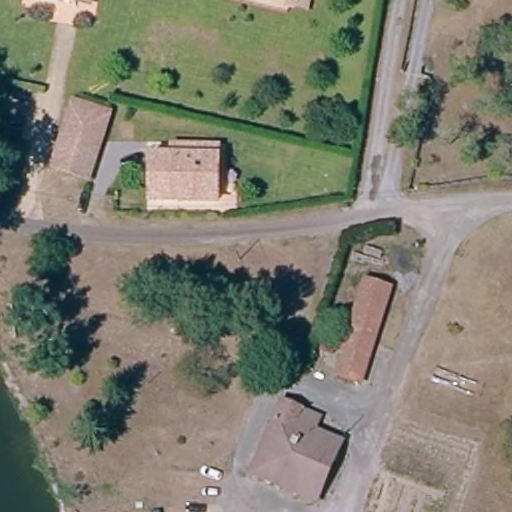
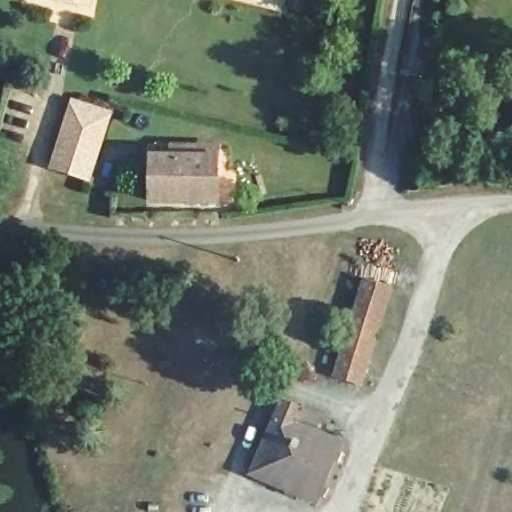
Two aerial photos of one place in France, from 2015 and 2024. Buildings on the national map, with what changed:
unchanged [(295,8),(296,0),(313,0),(310,12),(295,8)]
unchanged [(105,118),(85,183),(52,173),(52,171),(71,108),(105,118)]
unchanged [(219,206),(155,205),(157,161),(220,163),(219,206)]
unchanged [(340,377),(356,325),(353,325),(366,280),(395,290),(365,385),(340,377)]
unchanged [(315,503),(251,475),(277,416),(290,421),(295,410),(321,422),(317,433),(340,444),(315,503)]

